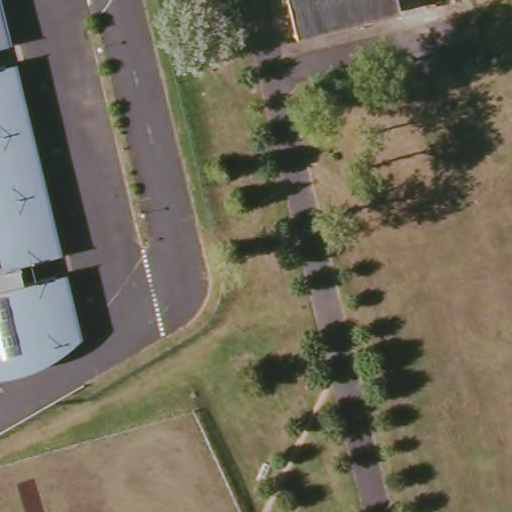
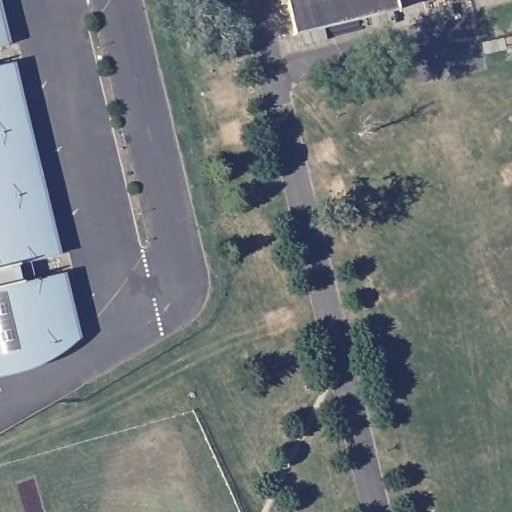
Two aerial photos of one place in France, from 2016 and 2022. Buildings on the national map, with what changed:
unchanged [(398,9),(298,33),(290,0),(396,0),(398,9)]
unchanged [(4,70),(47,263),(13,271),(0,274),(0,71),(4,70)]
unchanged [(13,271),(17,288),(0,293),(0,274),(13,271)]
unchanged [(51,281),(67,346),(61,351),(56,356),(46,362),(34,369),(26,372),(18,375),(10,378),(4,379),(0,380),(0,293),(17,288),(51,281)]

